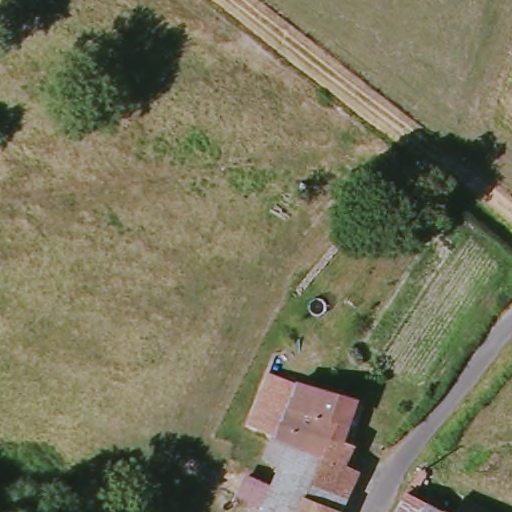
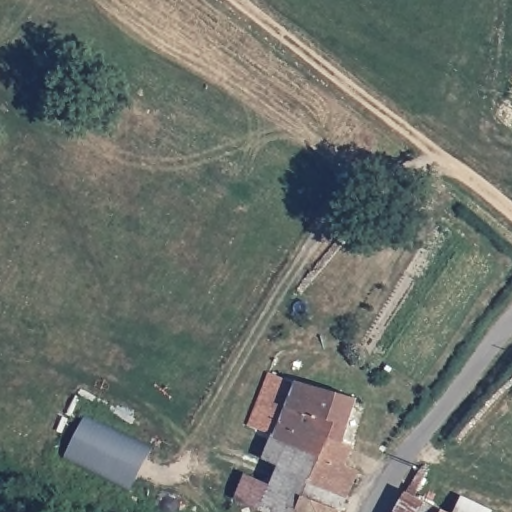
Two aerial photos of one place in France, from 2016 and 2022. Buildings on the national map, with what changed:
unchanged [(299,382),(277,435),(275,434),(274,437),(247,428),(268,373),(299,382)]
unchanged [(270,512),(263,509),(238,498),(249,475),(274,484),(282,464),(266,458),(274,437),(275,434),(277,435),(299,382),(357,398),(349,424),(345,423),(339,440),(353,445),(343,464),(358,471),(352,484),(341,510),(340,512),(270,512)]
new [(65,455),(86,414),(153,447),(131,487),(65,455)]
unchanged [(397,512),(408,492),(411,487),(418,491),(416,495),(444,510),(447,512),(397,512)]
unchanged [(491,511),(491,512),(456,512),(464,497),(491,511)]

